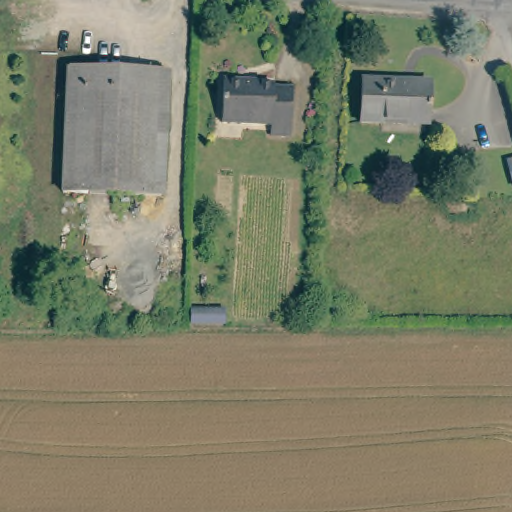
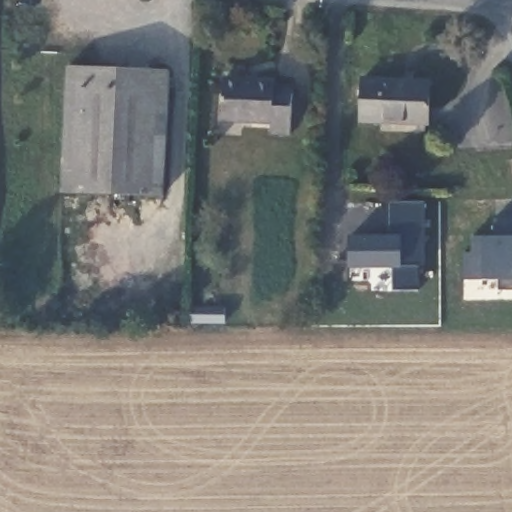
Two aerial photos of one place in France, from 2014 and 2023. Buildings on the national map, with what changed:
unchanged [(65,190),(71,62),(172,68),(166,192),(65,190)]
unchanged [(362,118),(362,74),(434,74),(434,118),(362,118)]
unchanged [(275,82),(275,87),(297,88),(296,134),(273,133),(274,122),(226,120),(227,76),(252,77),(251,81),(275,82)]
new [(419,263),(420,288),(394,289),(393,265),(350,265),(350,235),(390,234),(389,199),(424,199),(425,235),(425,263),(419,263)]
new [(463,249),(471,249),(472,233),(494,233),(494,216),(512,216),(512,287),(498,287),(498,277),(463,277),(463,249)]

